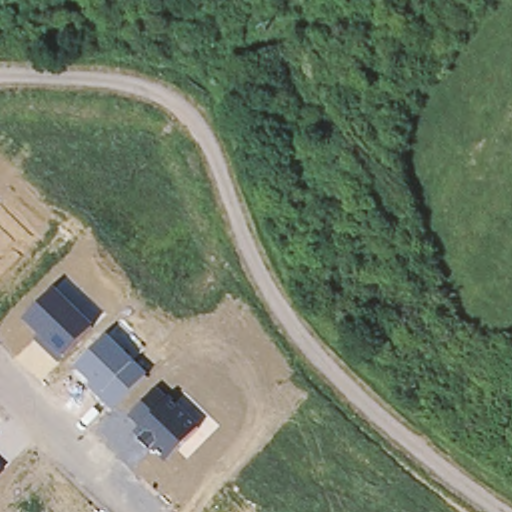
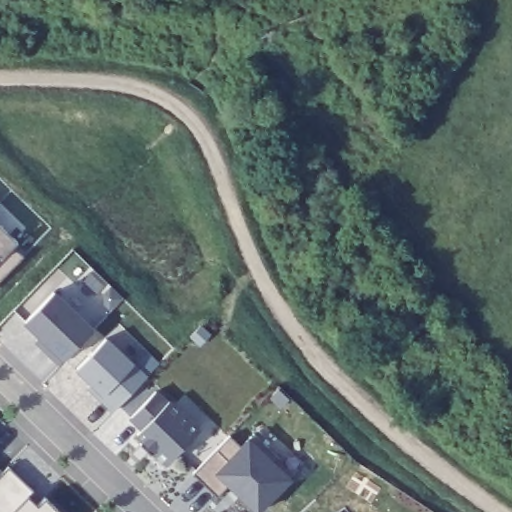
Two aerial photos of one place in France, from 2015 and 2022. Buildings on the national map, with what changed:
new [(12,245),(22,255),(0,279),(0,223),(17,240),(12,245)]
unchanged [(35,341),(41,335),(25,320),(57,290),(95,326),(63,358),(58,363),(35,341)]
unchanged [(90,387),(92,381),(76,367),(109,337),(135,361),(148,375),(113,410),(90,387)]
unchanged [(155,450),(152,454),(141,440),(143,439),(136,432),(141,427),(130,416),(157,390),(170,400),(171,398),(202,428),(168,461),(155,450)]
new [(230,485),(218,496),(193,473),(230,435),(243,447),(255,435),(280,458),(277,465),(291,480),(260,512),(257,512),(230,485)]
new [(0,473),(3,470),(7,465),(43,498),(58,512),(0,512),(0,473)]
unchanged [(0,473),(0,467),(3,470),(0,473)]

